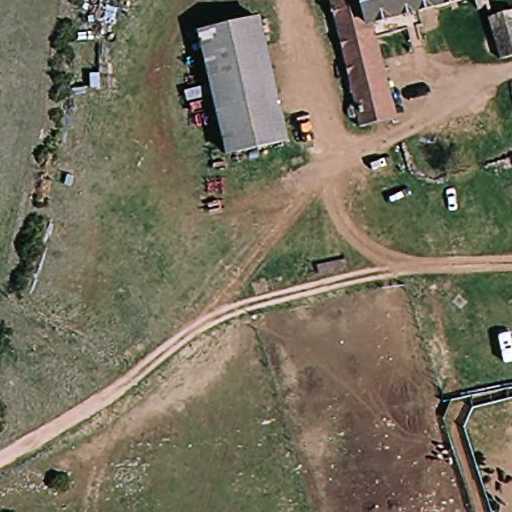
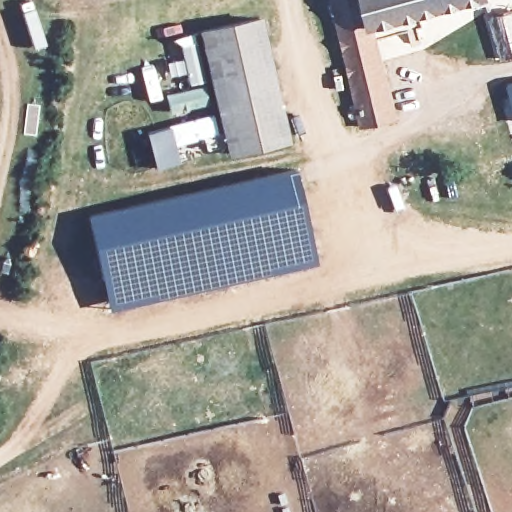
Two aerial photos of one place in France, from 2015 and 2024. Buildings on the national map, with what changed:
unchanged [(365,32),(389,119),(356,130),(324,0),(470,0),(365,32)]
unchanged [(512,57),(506,60),(492,18),(512,10),(512,57)]
unchanged [(246,22),(271,148),(220,157),(195,31),(246,22)]
new [(512,82),(512,101),(507,83),(512,82)]
new [(109,311),(87,215),(295,167),(317,264),(109,311)]

